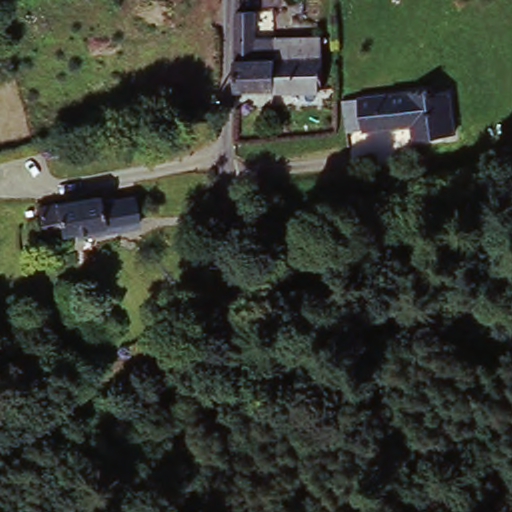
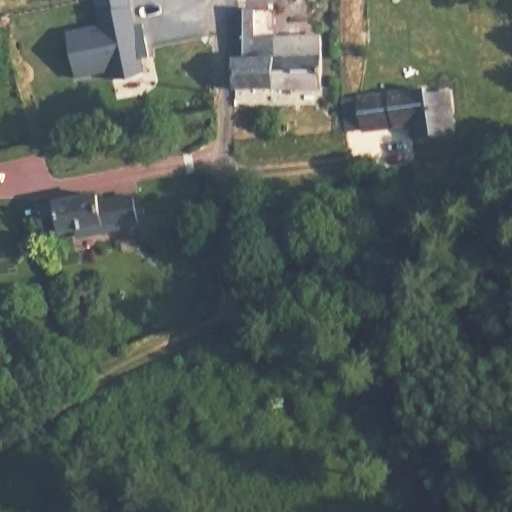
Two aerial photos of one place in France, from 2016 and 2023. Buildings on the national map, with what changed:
new [(97,0),(129,0),(130,6),(134,25),(142,23),(145,34),(149,55),(138,57),(141,71),(112,77),(111,68),(76,76),(67,32),(102,25),(99,12),(97,0)]
unchanged [(236,36),(237,11),(257,11),(257,37),(257,42),(263,43),(275,43),(292,43),(310,43),(321,43),(322,57),(322,87),(322,88),(276,88),(237,88),(236,57),(236,56),(236,36)]
unchanged [(351,132),(348,100),(362,98),(385,96),(395,95),(432,92),(432,97),(453,94),(457,136),(415,141),(414,126),(397,127),(388,128),(366,131),(351,132)]
unchanged [(40,207),(99,196),(104,225),(45,236),(40,207)]

